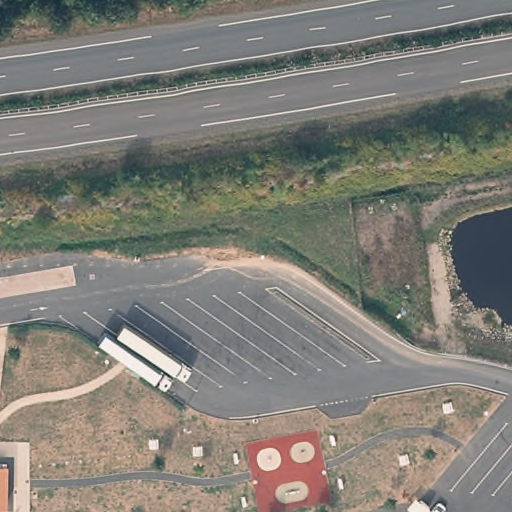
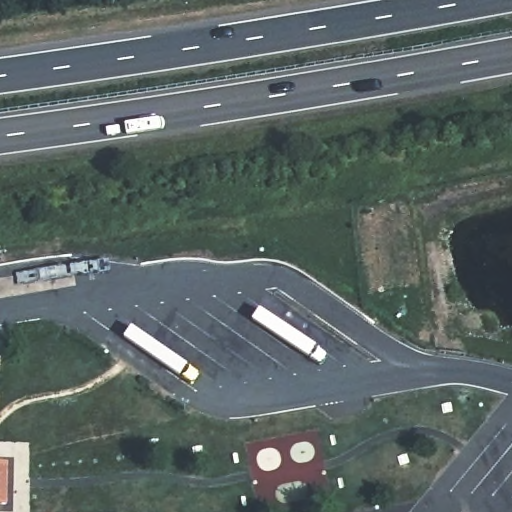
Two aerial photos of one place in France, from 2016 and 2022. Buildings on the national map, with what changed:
unchanged [(9,462),(9,509),(0,509),(0,462),(9,462)]

